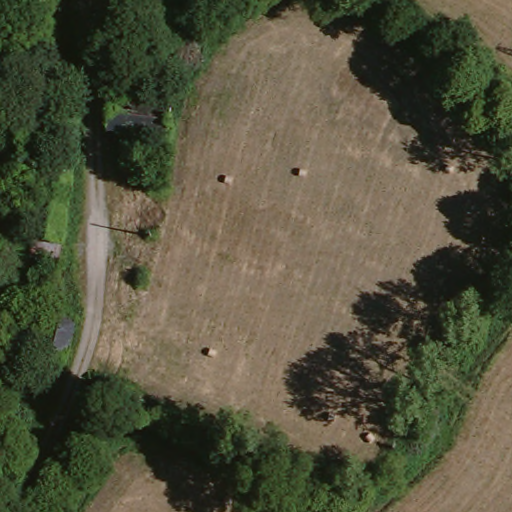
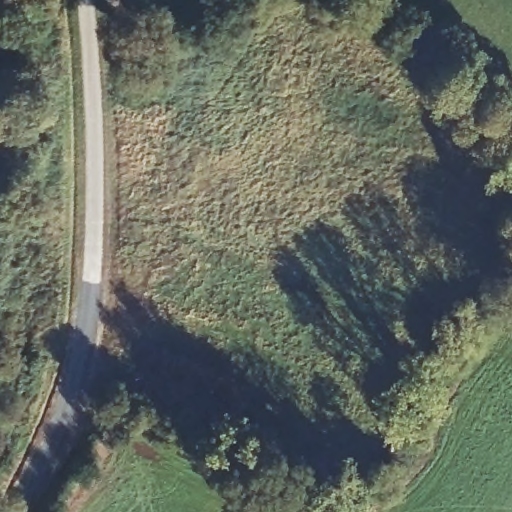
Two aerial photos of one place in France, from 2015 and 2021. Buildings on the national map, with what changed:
unchanged [(170,101),(168,125),(104,116),(106,94),(126,94),(170,101)]
unchanged [(100,148),(104,116),(168,125),(164,155),(100,148)]
unchanged [(59,256),(25,251),(37,162),(72,167),(59,256)]
unchanged [(66,370),(28,366),(36,316),(74,322),(66,370)]

